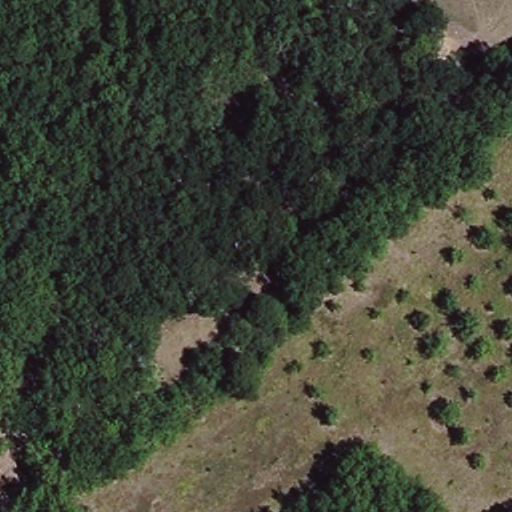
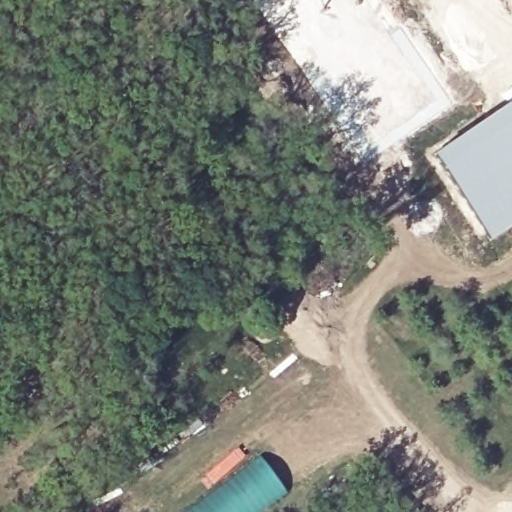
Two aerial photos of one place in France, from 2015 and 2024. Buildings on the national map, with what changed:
new [(512,97),(512,226),(490,240),(430,152),(512,97)]
new [(287,491),(260,512),(183,512),(258,453),(287,491)]

